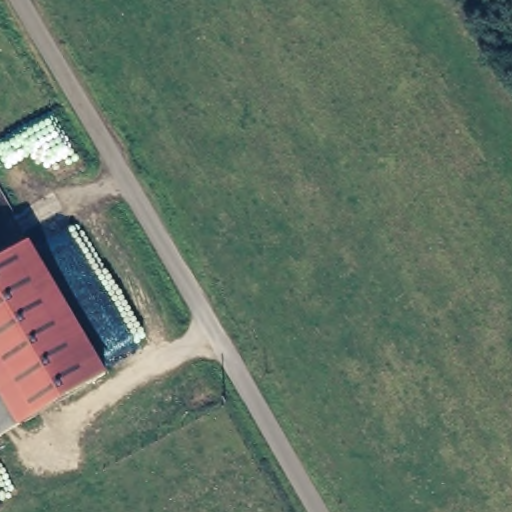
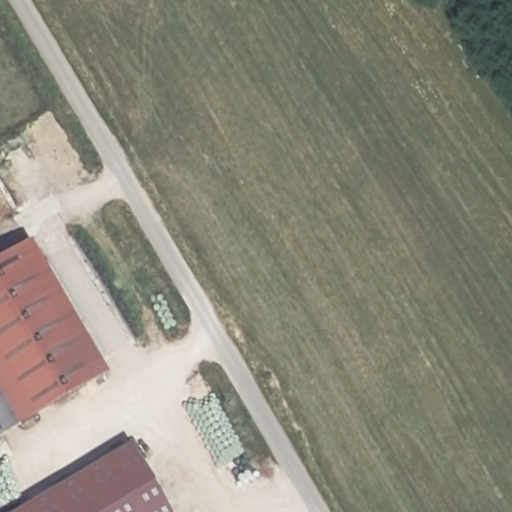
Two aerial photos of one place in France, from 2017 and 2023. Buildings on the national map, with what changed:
unchanged [(127,339),(95,357),(37,256),(67,239),(127,339)]
unchanged [(0,433),(0,261),(26,246),(100,375),(0,433)]
new [(164,512),(27,512),(130,453),(164,512)]

